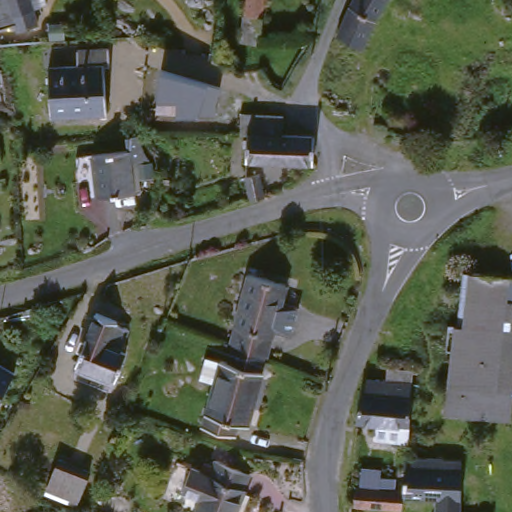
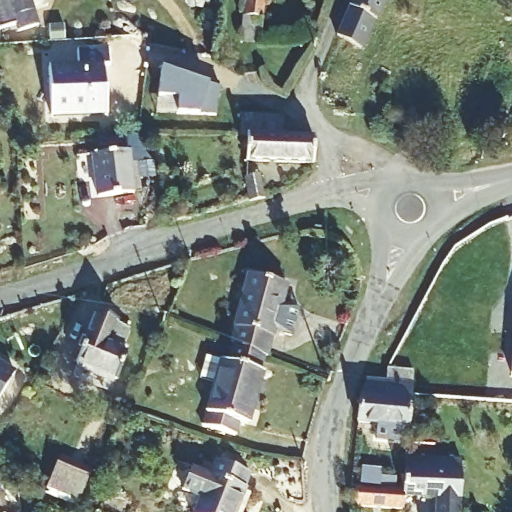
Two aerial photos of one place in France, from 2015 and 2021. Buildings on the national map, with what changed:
unchanged [(49,9),(36,11),(39,29),(19,32),(18,25),(0,28),(0,0),(48,0),(49,9)]
unchanged [(263,42),(239,41),(245,0),(267,0),(263,42)]
unchanged [(359,57),(336,45),(360,0),(389,0),(359,57)]
unchanged [(103,81),(103,127),(45,126),(47,80),(72,80),(73,62),(103,64),(103,81)]
unchanged [(148,81),(209,96),(206,111),(206,125),(167,125),(168,110),(148,110),(148,81)]
unchanged [(234,167),(234,144),(230,144),(230,127),(241,126),(279,126),(279,144),(310,144),(311,170),(234,171),(234,167)]
unchanged [(96,205),(86,162),(124,152),(133,196),(96,205)]
unchanged [(242,184),(262,178),(270,200),(265,203),(248,210),(242,184)]
demolished [(449,328),(461,328),(465,279),(512,282),(512,335),(510,362),(512,362),(512,403),(510,414),(507,428),(441,422),(449,328)]
unchanged [(243,282),(284,293),(264,369),(257,367),(243,362),(230,357),(224,355),(243,282)]
unchanged [(104,385),(66,370),(87,320),(116,332),(108,352),(120,357),(104,385)]
unchanged [(243,362),(257,367),(249,391),(254,392),(240,431),(230,427),(223,442),(196,432),(216,378),(221,380),(230,357),(243,362)]
unchanged [(11,376),(0,395),(0,371),(11,376)]
unchanged [(409,378),(411,378),(409,435),(408,440),(408,449),(376,448),(375,433),(358,434),(358,414),(369,390),(379,390),(385,377),(392,377),(409,378)]
unchanged [(415,455),(462,455),(462,512),(442,512),(442,493),(401,492),(401,482),(403,462),(413,463),(415,455)]
unchanged [(177,497),(187,475),(209,483),(217,468),(246,480),(233,512),(196,512),(198,506),(177,497)]
unchanged [(55,469),(86,480),(74,512),(68,512),(40,502),(55,469)]
unchanged [(401,492),(399,512),(350,512),(352,480),(401,482),(401,492)]
unchanged [(500,480),(502,512),(478,512),(478,480),(500,480)]

